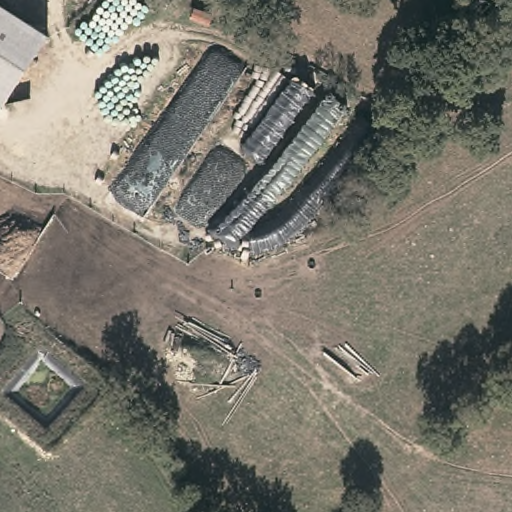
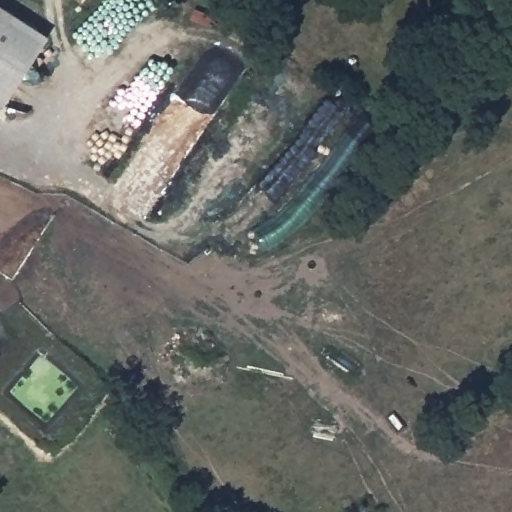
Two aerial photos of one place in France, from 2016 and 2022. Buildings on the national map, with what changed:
unchanged [(46,45),(0,106),(0,12),(46,45)]

